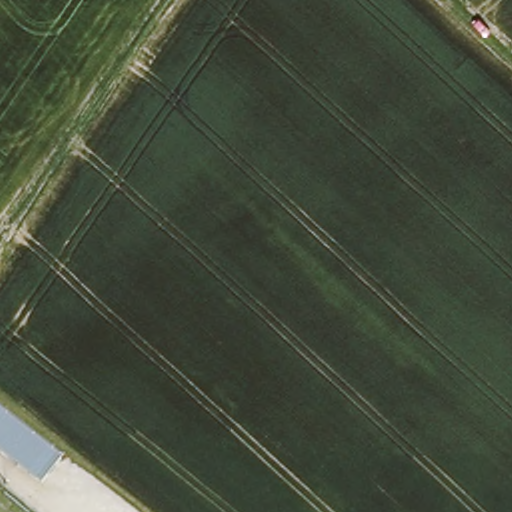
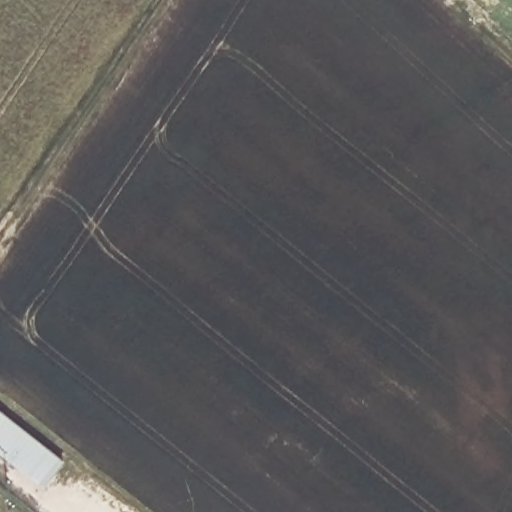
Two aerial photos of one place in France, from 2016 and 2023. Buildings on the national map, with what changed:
unchanged [(42,486),(0,453),(0,409),(63,459),(42,486)]

